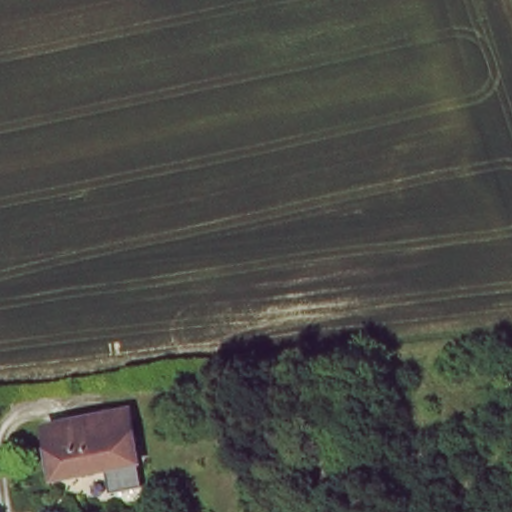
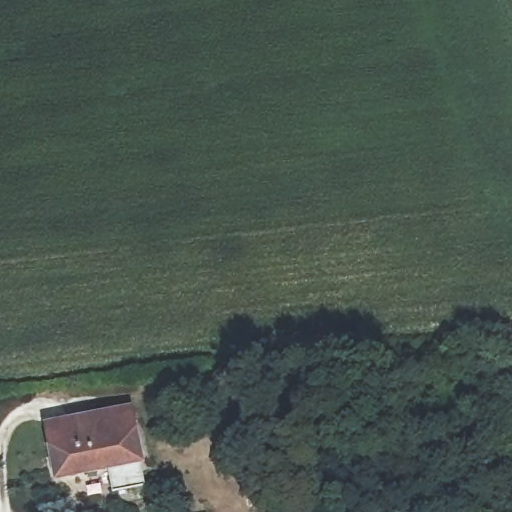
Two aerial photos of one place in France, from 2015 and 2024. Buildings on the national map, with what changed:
unchanged [(85,417),(139,412),(147,490),(137,491),(111,493),(108,468),(59,473),(52,421),(85,417)]

